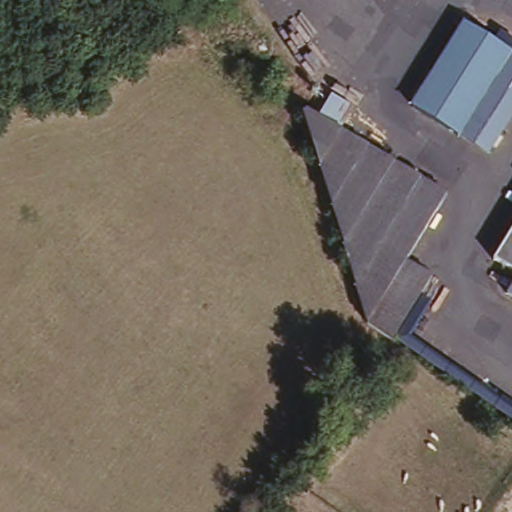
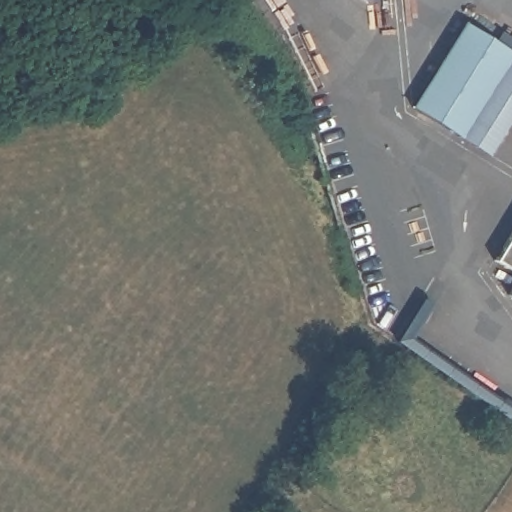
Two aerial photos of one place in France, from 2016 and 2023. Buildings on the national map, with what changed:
unchanged [(462,21),(506,48),(512,53),(512,108),(479,156),(406,105),(462,21)]
demolished [(341,124),(448,196),(421,238),(439,251),(404,301),(414,309),(407,322),(376,305),(316,113),(341,124)]
unchanged [(487,264),(512,223),(512,280),(487,264)]
unchanged [(512,401),(512,422),(395,338),(432,278),(444,287),(414,334),(512,401)]
unchanged [(502,296),(512,280),(512,302),(502,296)]

